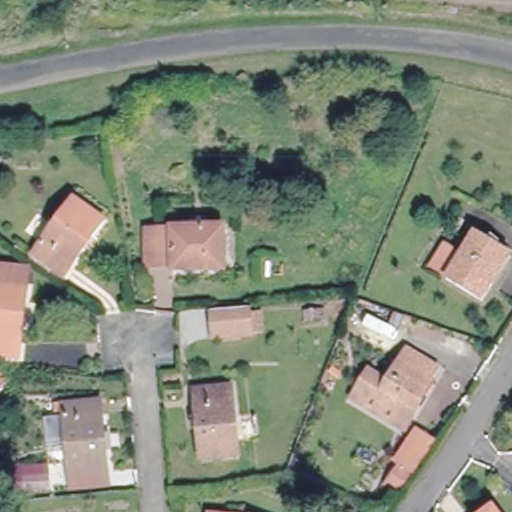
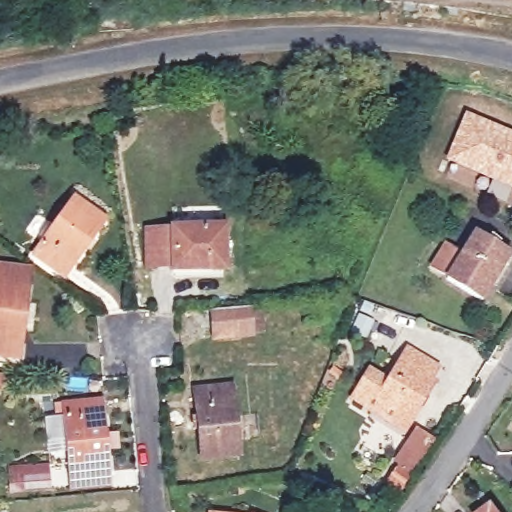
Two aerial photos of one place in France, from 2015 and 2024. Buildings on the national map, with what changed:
new [(512,189),(446,161),(466,113),(512,132),(512,189)]
unchanged [(64,277),(32,256),(73,200),(104,222),(64,277)]
unchanged [(223,270),(172,270),(172,266),(146,266),(146,229),(224,230),(223,270)]
unchanged [(490,286),(482,298),(448,277),(475,234),(509,255),(490,286)]
unchanged [(22,348),(0,345),(0,274),(31,278),(22,348)]
unchanged [(222,338),(220,312),(257,310),(260,335),(222,338)]
unchanged [(391,350),(377,343),(375,346),(349,333),(360,312),(400,333),(391,350)]
unchanged [(429,379),(433,382),(410,421),(356,390),(368,369),(388,380),(406,348),(437,367),(429,379)]
unchanged [(236,452),(201,456),(194,392),(229,388),(236,452)]
unchanged [(71,478),(70,463),(67,430),(47,432),(45,410),(64,408),(63,394),(100,391),(106,460),(107,475),(71,478)]
unchanged [(413,477),(401,468),(415,448),(427,456),(413,477)]
unchanged [(493,512),(485,512),(490,508),(493,512)]

